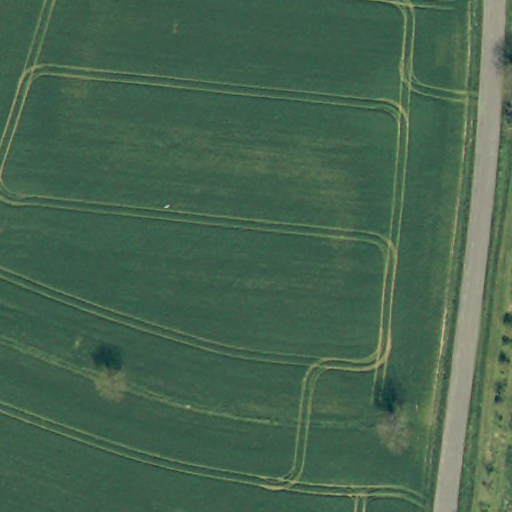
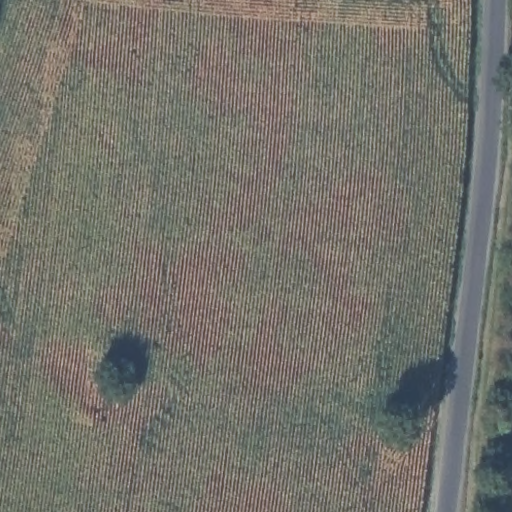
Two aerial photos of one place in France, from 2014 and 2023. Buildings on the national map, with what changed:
[]

